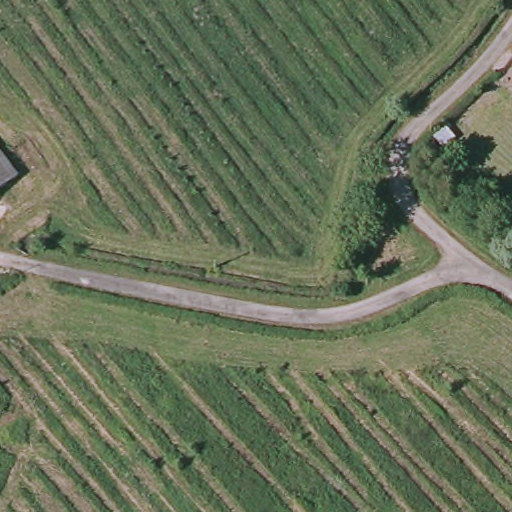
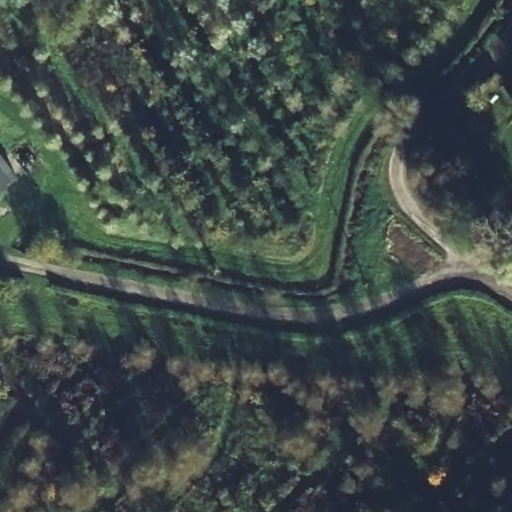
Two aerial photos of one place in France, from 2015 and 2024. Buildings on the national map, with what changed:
unchanged [(512,41),(512,48),(509,45),(512,41)]
unchanged [(15,170),(0,182),(0,151),(15,170)]

